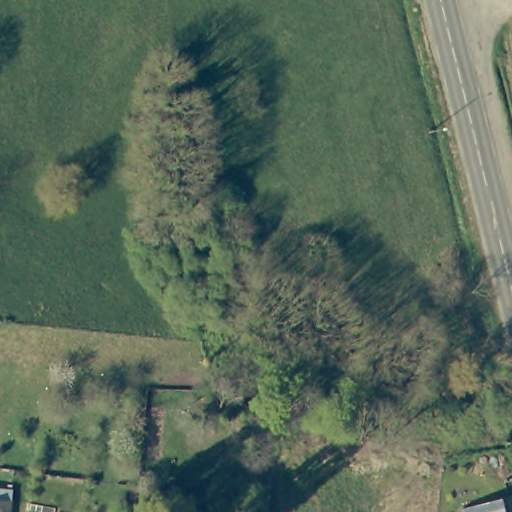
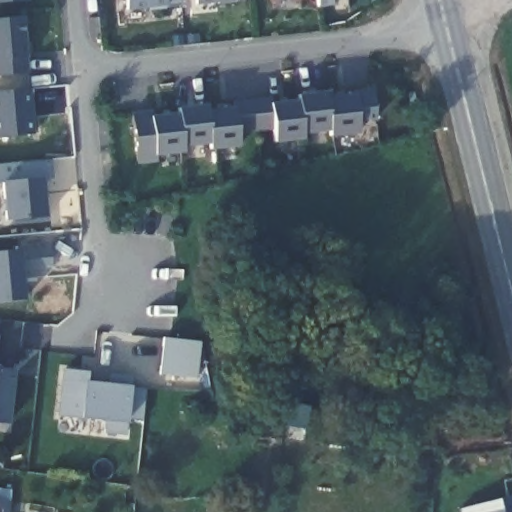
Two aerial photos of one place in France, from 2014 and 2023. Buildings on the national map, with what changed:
new [(0,4),(0,0),(27,0),(0,4)]
new [(149,10),(149,7),(124,10),(123,0),(182,0),(182,5),(149,10)]
unchanged [(194,0),(236,0),(195,5),(194,0)]
new [(337,0),(337,7),(318,7),(318,0),(337,0)]
new [(0,76),(0,19),(23,17),(28,73),(0,76)]
new [(152,109),(152,116),(177,114),(178,108),(207,105),(209,109),(234,106),(232,98),(269,95),(271,102),(298,99),(297,94),(327,91),(327,96),(352,94),(352,88),(373,86),(377,121),(357,123),(358,133),(328,136),(328,131),(305,134),(305,139),(274,142),(273,127),(238,131),(239,145),(210,149),(209,143),(184,145),(184,152),(157,155),(157,163),(135,165),(130,111),(152,109)]
new [(0,92),(30,89),(34,135),(0,137),(0,92)]
new [(42,180),(47,215),(4,220),(0,187),(0,164),(50,159),(52,179),(42,180)]
new [(23,273),(25,298),(0,300),(0,251),(50,246),(52,267),(23,273)]
new [(0,367),(14,367),(9,424),(0,423),(0,367)]
new [(89,372),(86,381),(108,383),(110,373),(132,375),(130,387),(145,389),(141,421),(127,418),(126,423),(126,435),(104,432),(106,421),(80,419),(56,417),(62,369),(89,372)]
unchanged [(17,512),(0,512),(0,487),(20,488),(17,512)]
unchanged [(461,505),(509,492),(512,503),(512,512),(463,512),(461,505)]

